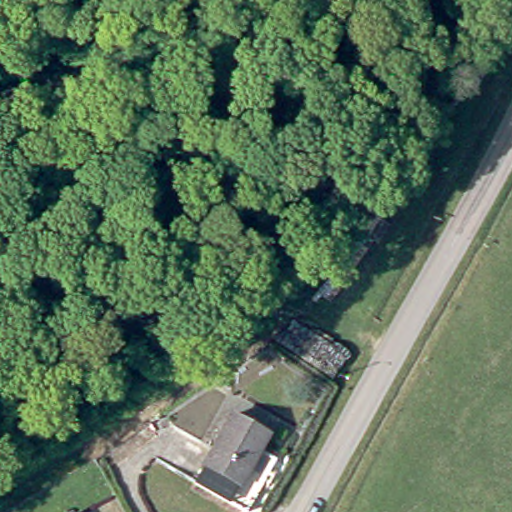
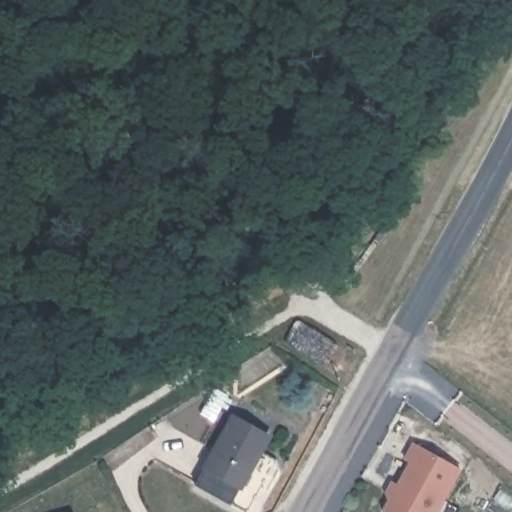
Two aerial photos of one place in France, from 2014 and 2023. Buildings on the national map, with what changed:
unchanged [(273,431),(266,447),(280,455),(250,510),(201,482),(238,414),(273,431)]
new [(437,512),(382,512),(380,508),(385,498),(383,492),(390,480),(395,482),(407,460),(402,457),(411,441),(461,467),(437,512)]

